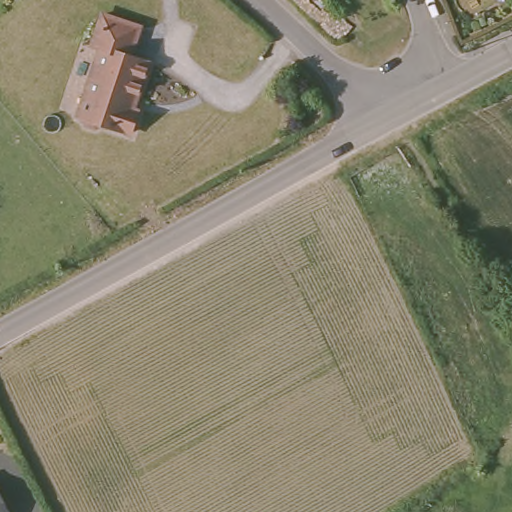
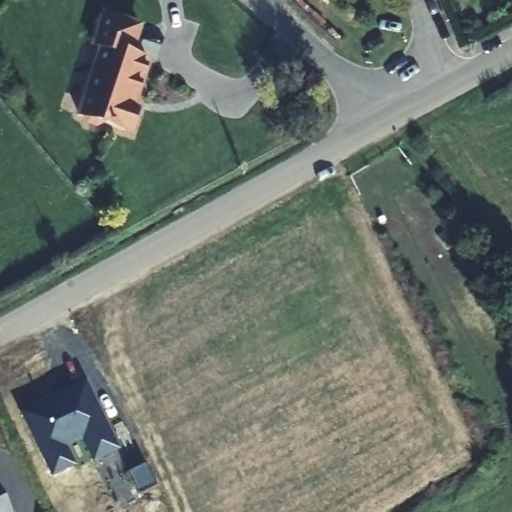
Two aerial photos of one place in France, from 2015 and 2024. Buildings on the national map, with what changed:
unchanged [(137,125),(108,116),(102,120),(94,118),(91,112),(85,110),(104,42),(95,40),(104,8),(142,18),(134,48),(152,53),(138,101),(143,102),(137,125)]
new [(67,448),(75,465),(52,477),(21,413),(85,381),(120,450),(93,463),(82,441),(67,448)]
unchanged [(12,512),(0,512),(0,488),(12,512)]

